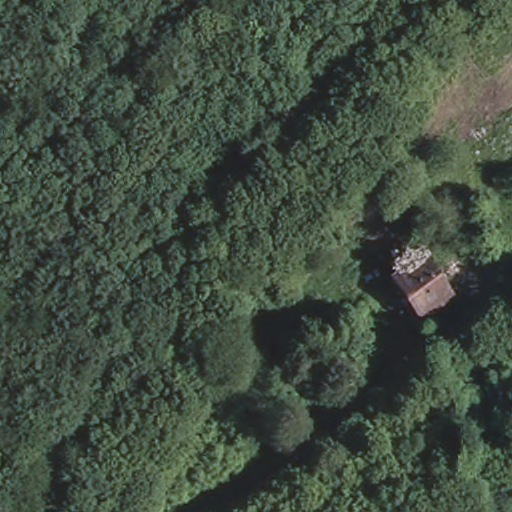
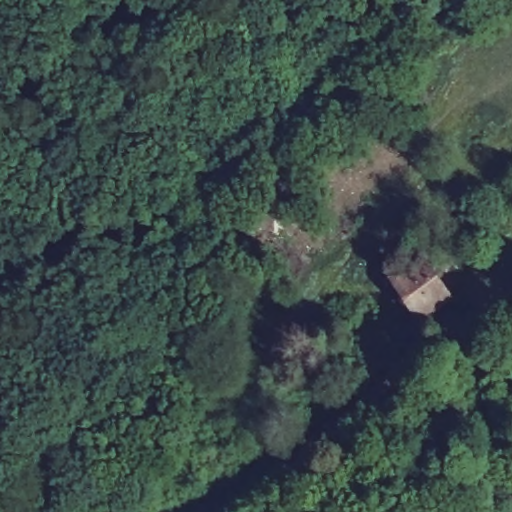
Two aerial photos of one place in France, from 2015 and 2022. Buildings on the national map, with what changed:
unchanged [(387,273),(420,251),(449,292),(416,314),(410,305),(402,311),(390,293),(398,288),(387,273)]

